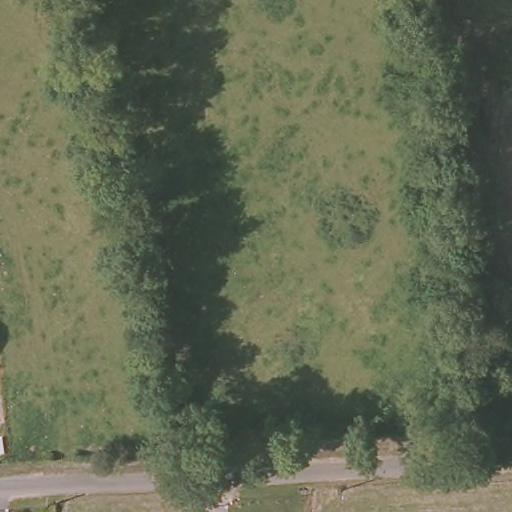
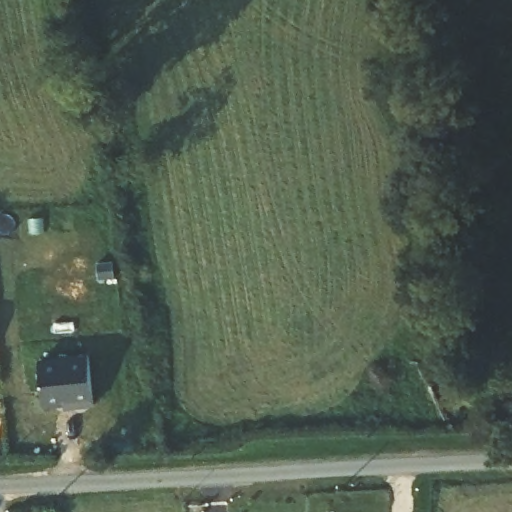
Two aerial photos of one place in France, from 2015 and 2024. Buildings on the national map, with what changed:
new [(93,404),(45,408),(41,357),(89,353),(93,404)]

